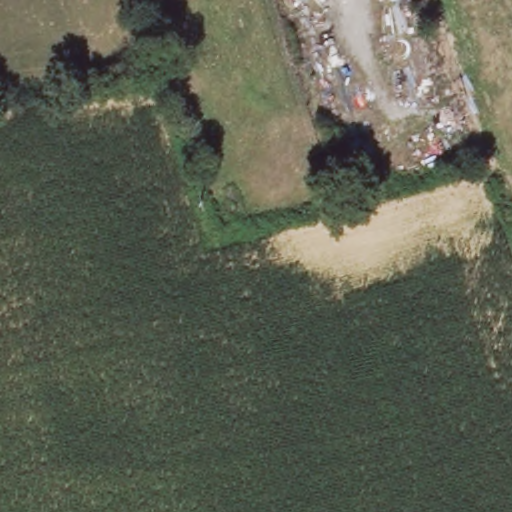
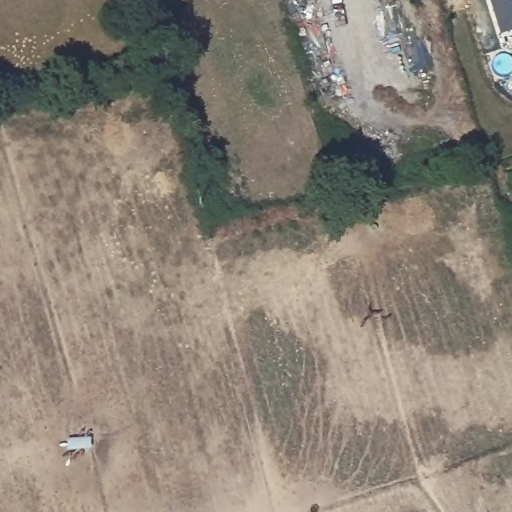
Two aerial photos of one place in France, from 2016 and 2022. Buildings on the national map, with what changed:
new [(505,24),(495,19),(488,0),(512,0),(512,22),(505,24)]

